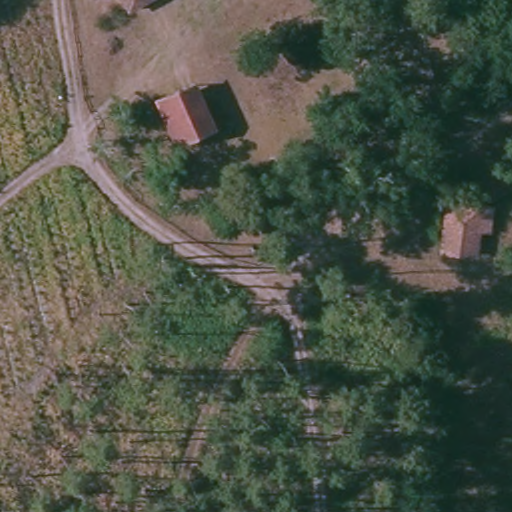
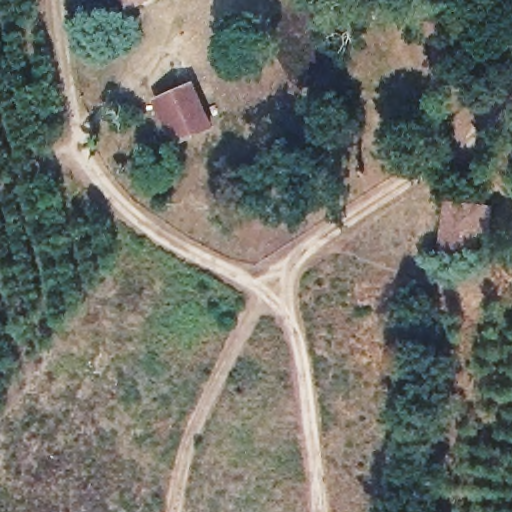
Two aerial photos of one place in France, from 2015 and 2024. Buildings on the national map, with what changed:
unchanged [(126,14),(120,0),(159,0),(126,14)]
unchanged [(190,82),(214,128),(175,144),(153,100),(190,82)]
unchanged [(438,253),(441,202),(483,206),(477,259),(438,253)]

